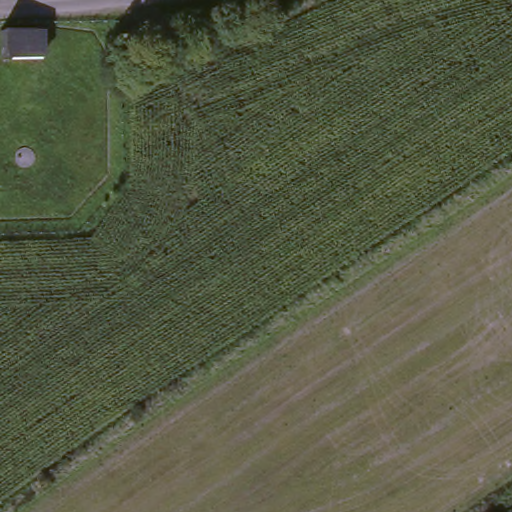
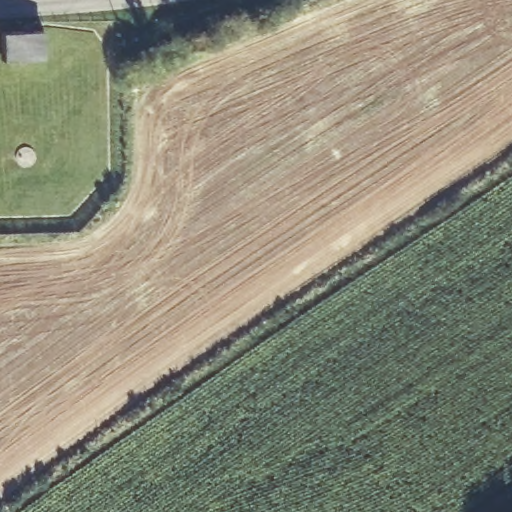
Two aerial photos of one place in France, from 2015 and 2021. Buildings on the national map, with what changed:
unchanged [(0,64),(0,41),(46,41),(42,63),(0,64)]

